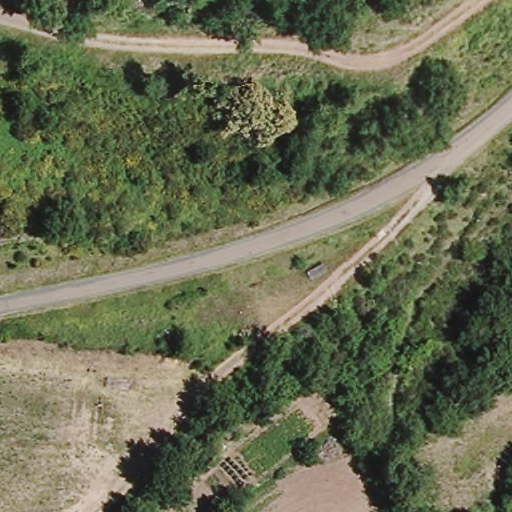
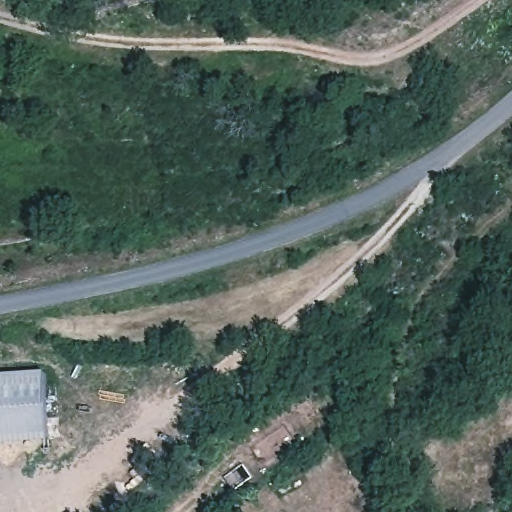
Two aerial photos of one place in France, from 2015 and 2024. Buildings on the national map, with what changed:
new [(55,429),(0,434),(0,373),(48,368),(55,429)]

